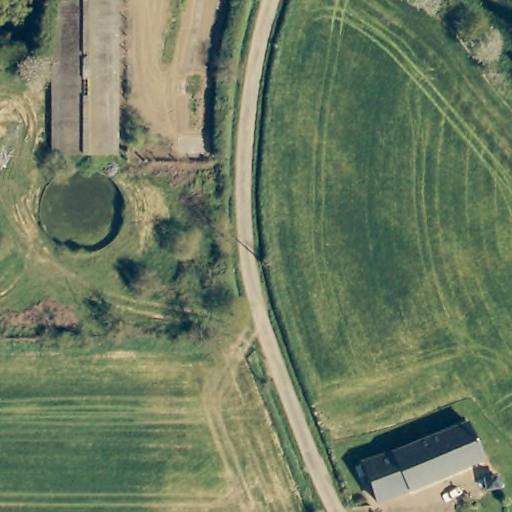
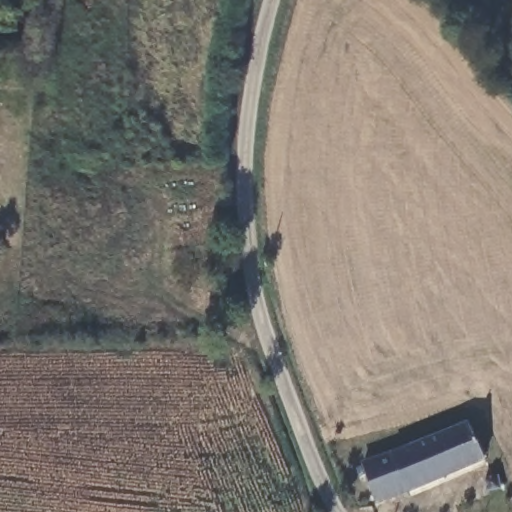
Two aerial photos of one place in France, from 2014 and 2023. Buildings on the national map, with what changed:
demolished [(56,156),(57,0),(120,0),(119,158),(56,156)]
unchanged [(377,502),(362,463),(466,423),(481,460),(377,502)]
unchanged [(493,475),(496,487),(484,490),(481,478),(493,475)]

